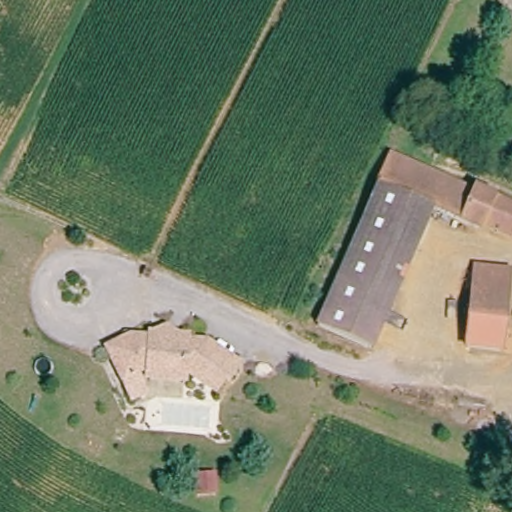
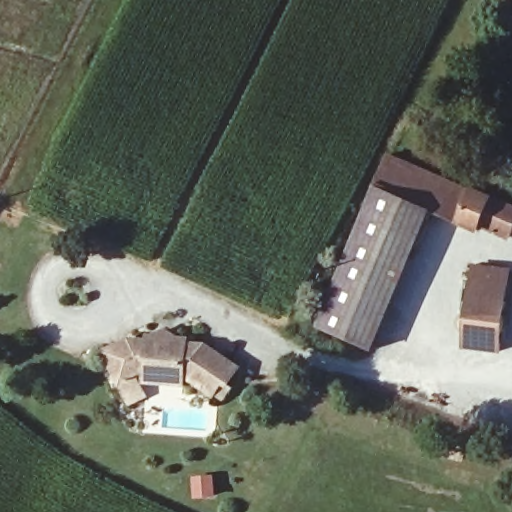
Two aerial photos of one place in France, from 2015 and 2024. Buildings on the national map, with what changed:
unchanged [(486,198),(469,229),(446,216),(392,186),(409,155),(486,198)]
unchanged [(446,216),(372,348),(318,318),(392,186),(446,216)]
unchanged [(512,213),(512,244),(495,234),(491,242),(469,229),(486,198),(512,213)]
unchanged [(510,305),(477,302),(479,270),(512,273),(512,286),(510,305)]
unchanged [(506,353),(473,351),(477,302),(510,305),(506,353)]
unchanged [(124,396),(120,386),(107,352),(131,343),(153,344),(154,338),(189,339),(189,346),(208,347),(239,369),(229,384),(223,380),(213,394),(186,376),(186,386),(151,385),(152,374),(139,379),(143,389),(124,396)]

